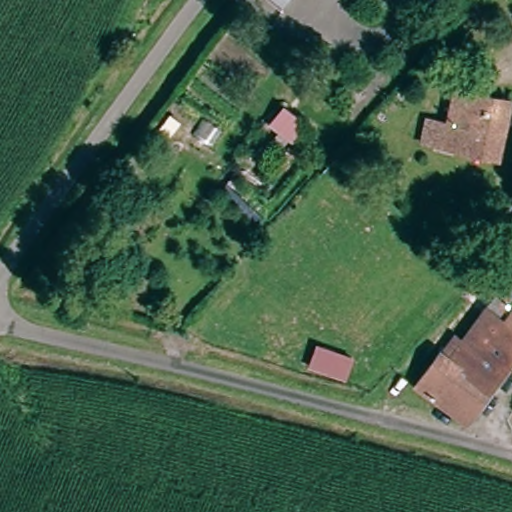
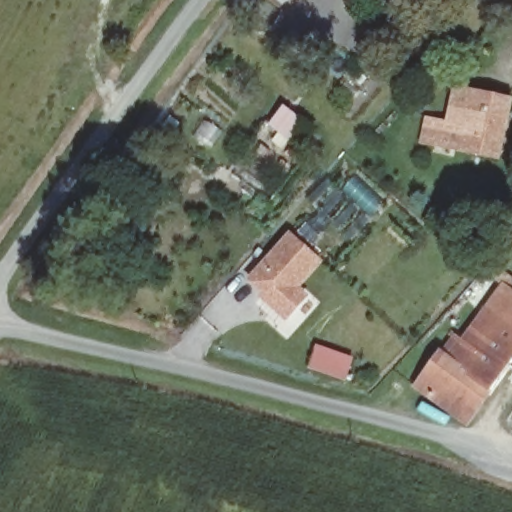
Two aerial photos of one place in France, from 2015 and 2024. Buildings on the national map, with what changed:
unchanged [(274,0),(283,0),(279,5),(274,0)]
unchanged [(450,126),(458,90),(508,102),(491,167),(443,155),(416,149),(423,119),(450,126)]
new [(323,262),(301,287),(310,295),(286,322),(257,298),(263,293),(247,278),(288,233),(323,262)]
unchanged [(512,316),(507,322),(492,310),(466,288),(482,269),(512,292),(512,316)]
unchanged [(507,322),(512,316),(512,360),(485,392),(450,362),(492,310),(507,322)]
unchanged [(458,423),(409,383),(437,351),(450,362),(485,392),(458,423)]

